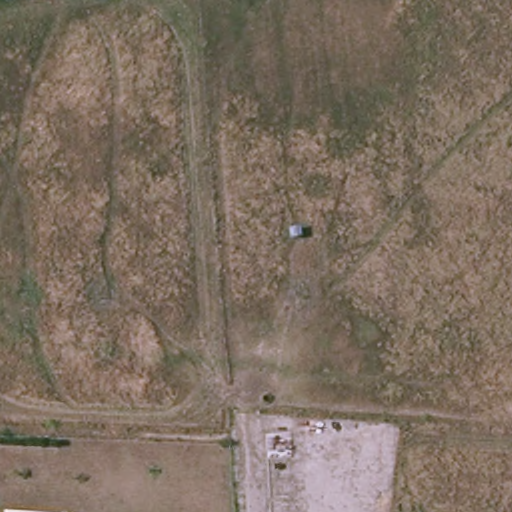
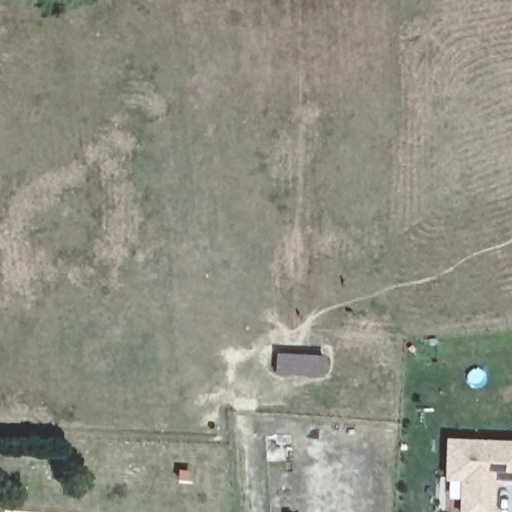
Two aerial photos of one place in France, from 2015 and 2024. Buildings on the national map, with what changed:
new [(274,374),(275,352),(324,355),(324,376),(274,374)]
new [(458,480),(443,479),(444,437),(512,440),(512,482),(493,482),(491,512),(457,512),(458,480)]

